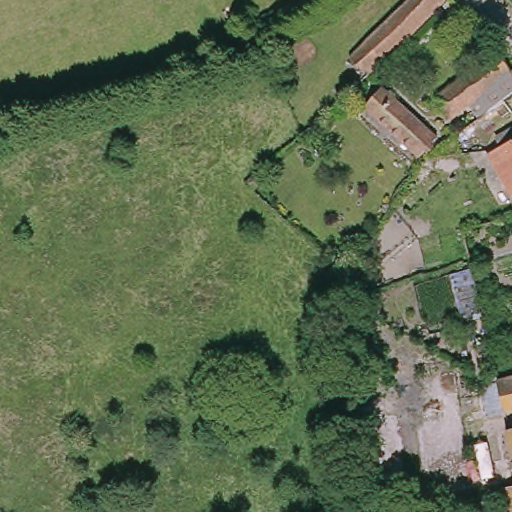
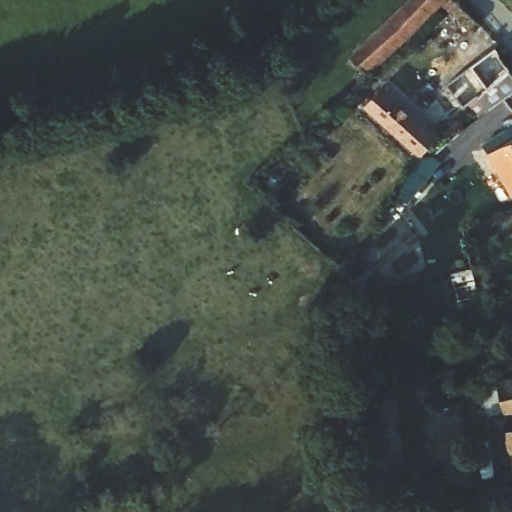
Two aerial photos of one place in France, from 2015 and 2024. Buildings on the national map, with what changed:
unchanged [(402,0),(443,0),(370,71),(349,53),(402,0)]
unchanged [(480,96),(457,114),(441,94),(501,45),(512,59),(512,92),(490,109),(480,96)]
unchanged [(384,88),(435,137),(417,155),(364,107),(384,88)]
unchanged [(508,194),(487,152),(512,139),(512,192),(508,194)]
unchanged [(487,416),(479,385),(495,380),(512,376),(512,410),(487,416)]
unchanged [(509,427),(512,427),(512,445),(509,427)]
unchanged [(512,485),(512,512),(509,512),(503,486),(512,485)]

